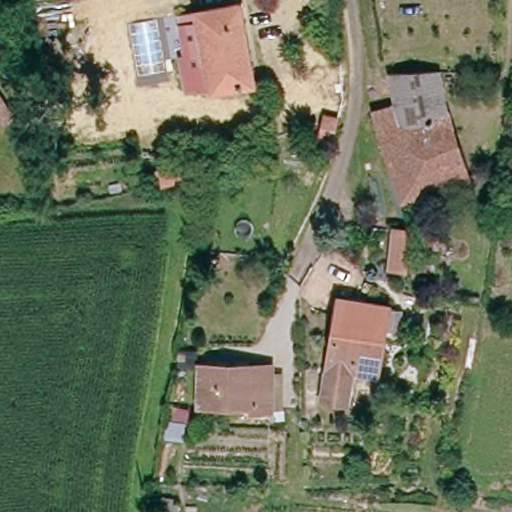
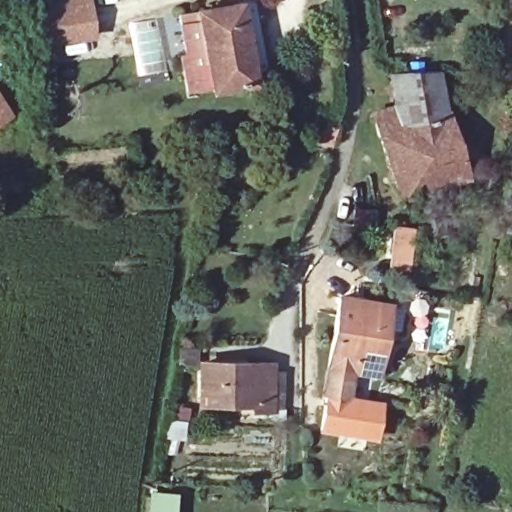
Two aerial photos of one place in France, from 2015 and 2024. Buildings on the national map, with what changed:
new [(95,36),(40,41),(34,0),(90,0),(95,36)]
unchanged [(212,91),(210,85),(185,87),(179,55),(183,54),(178,25),(177,13),(194,10),(240,2),(257,83),(212,91)]
unchanged [(390,71),(432,71),(468,177),(427,190),(398,107),(390,71)]
unchanged [(0,125),(0,105),(9,120),(0,125)]
unchanged [(398,107),(427,190),(401,199),(376,115),(398,107)]
unchanged [(393,260),(392,231),(408,229),(407,261),(393,260)]
unchanged [(373,373),(348,369),(343,396),(321,392),(336,308),(338,295),(383,303),(392,305),(385,326),(373,373)]
unchanged [(267,409),(249,408),(249,403),(198,400),(200,361),(268,364),(267,409)]
new [(343,396),(382,402),(377,440),(317,432),(321,392),(343,396)]
new [(149,512),(150,491),(176,492),(175,512),(149,512)]

